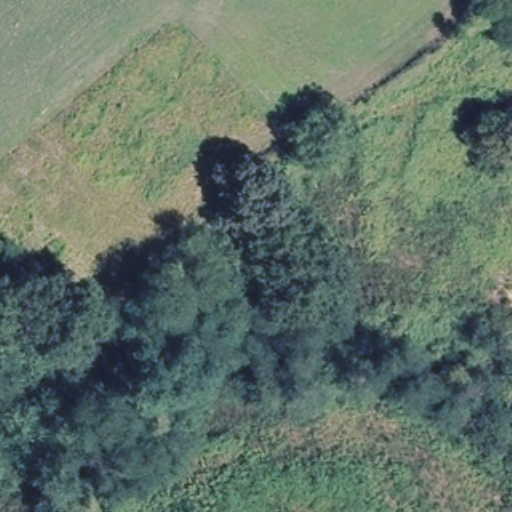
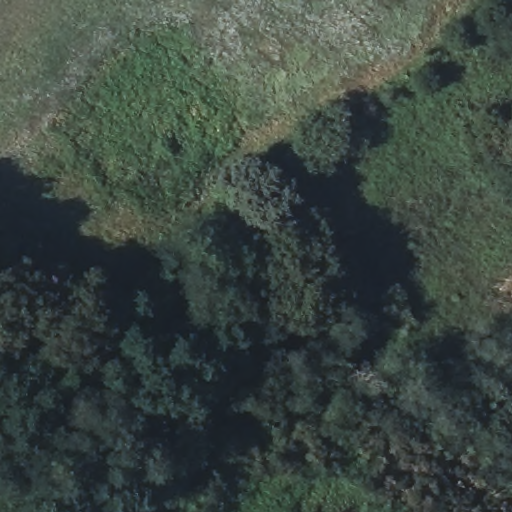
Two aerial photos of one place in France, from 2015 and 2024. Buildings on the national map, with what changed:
[]

